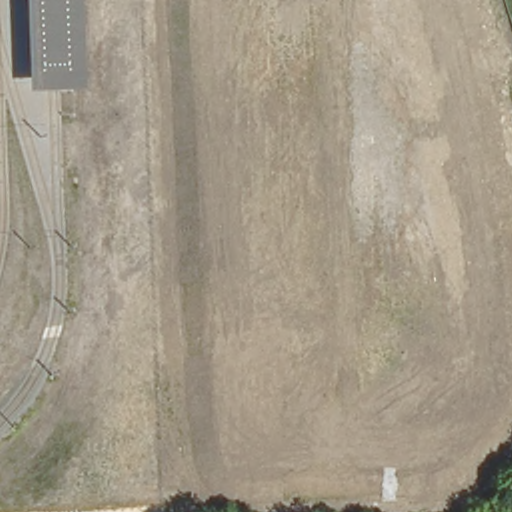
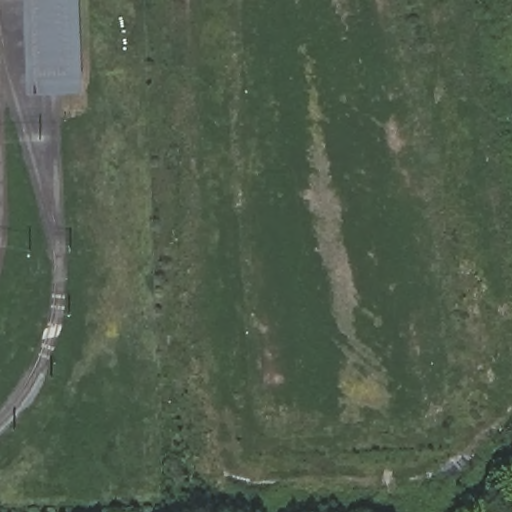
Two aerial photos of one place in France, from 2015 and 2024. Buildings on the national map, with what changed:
unchanged [(35,89),(30,0),(87,0),(91,85),(35,89)]

